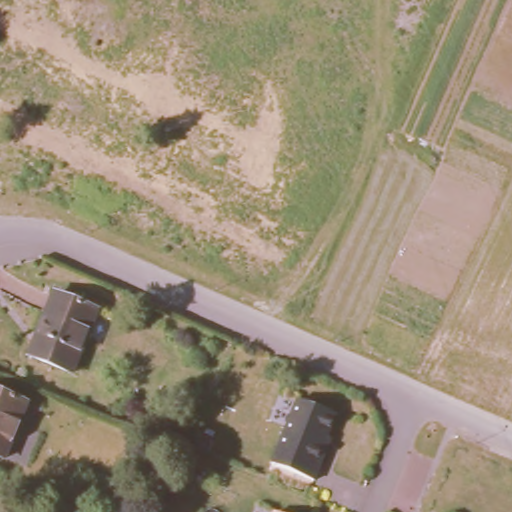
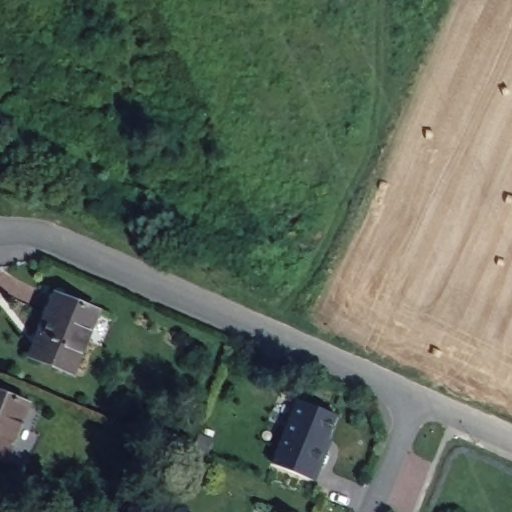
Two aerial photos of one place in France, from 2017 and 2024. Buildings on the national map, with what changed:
unchanged [(25,351),(52,290),(93,306),(67,368),(25,351)]
unchanged [(0,458),(0,393),(24,402),(1,459),(0,458)]
unchanged [(276,460),(296,400),(341,416),(321,480),(276,460)]
unchanged [(279,510),(283,512),(278,512),(279,510)]

